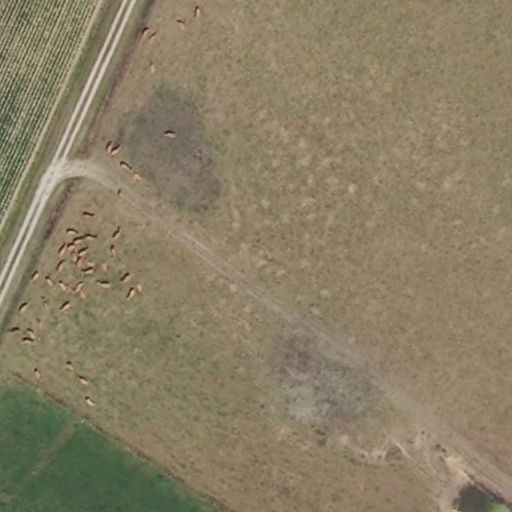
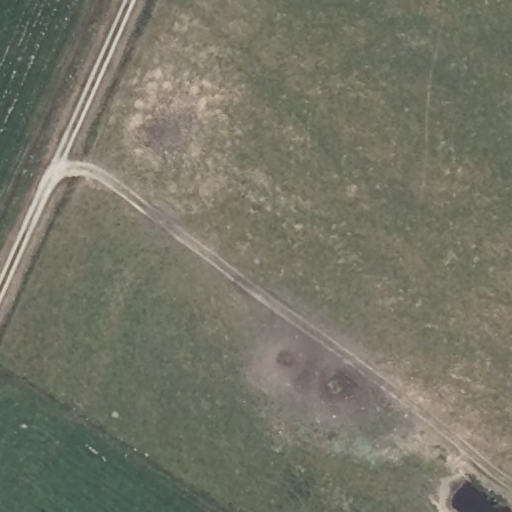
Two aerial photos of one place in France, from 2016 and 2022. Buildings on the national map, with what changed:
[]

